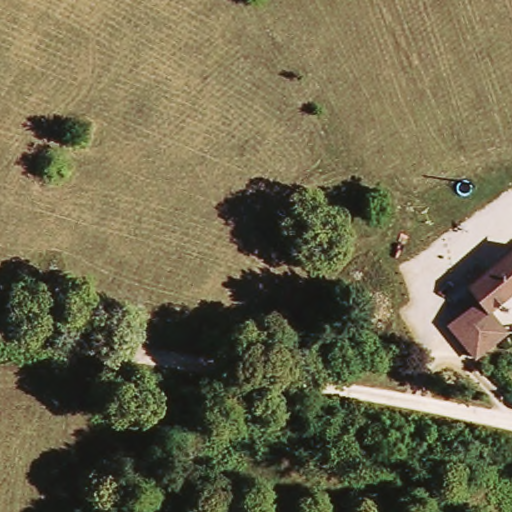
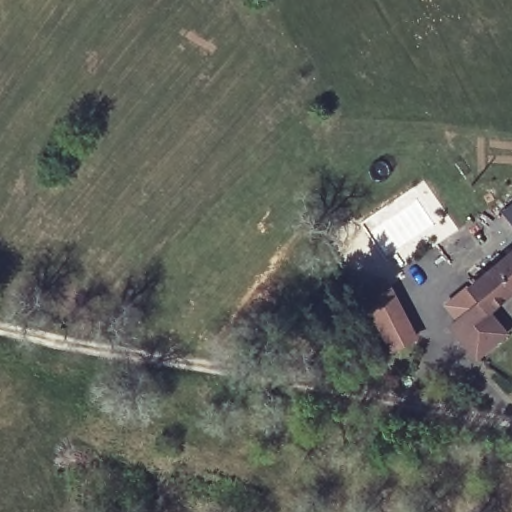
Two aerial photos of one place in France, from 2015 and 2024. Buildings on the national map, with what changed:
unchanged [(483,306),(467,288),(512,246),(512,282),(483,306)]
new [(366,289),(385,278),(417,340),(391,355),(363,302),(370,298),(366,289)]
unchanged [(430,311),(443,300),(442,297),(442,292),(445,287),(451,283),(459,284),(465,290),(465,297),(463,302),(456,306),(452,306),(437,320),(430,311)]
unchanged [(482,353),(457,326),(466,318),(470,323),(485,310),(504,331),(482,353)]

